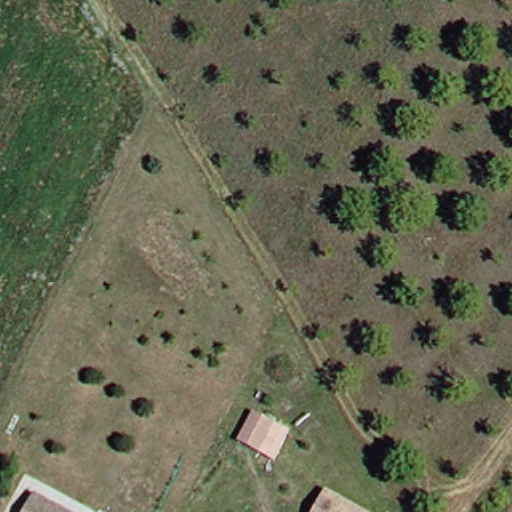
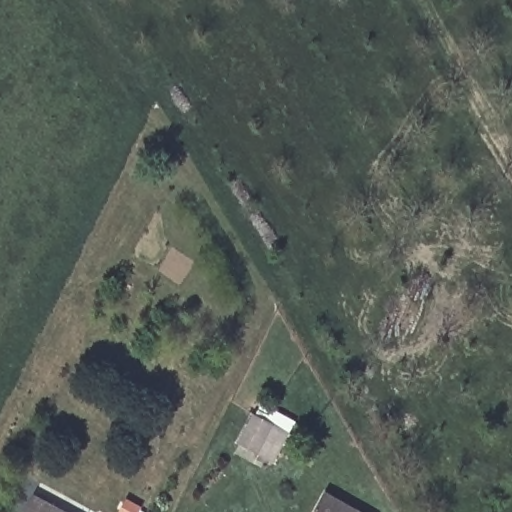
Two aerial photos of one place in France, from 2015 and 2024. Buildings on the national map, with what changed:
unchanged [(254,415),(274,427),(259,456),(238,445),(254,415)]
unchanged [(62,512),(16,512),(26,493),(62,512)]
unchanged [(346,512),(313,512),(321,497),(346,512)]

